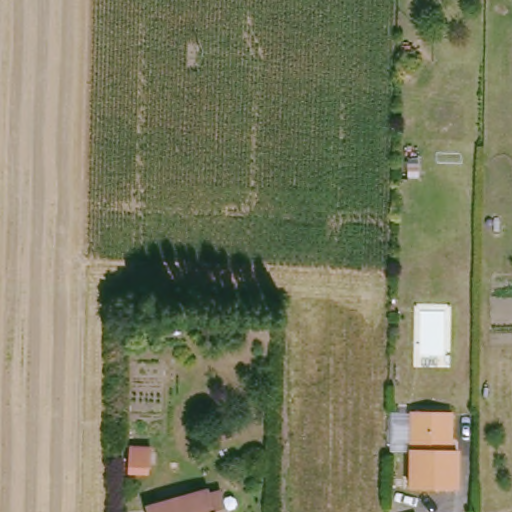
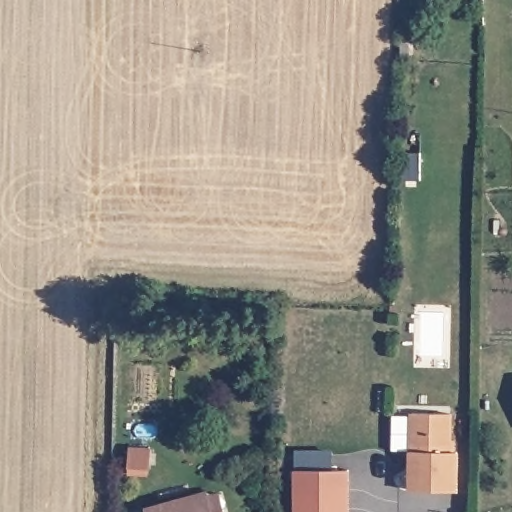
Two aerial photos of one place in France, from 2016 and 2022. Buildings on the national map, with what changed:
unchanged [(450,451),(457,451),(457,491),(410,490),(412,412),(450,413),(450,451)]
new [(351,469),(351,512),(295,512),(295,469),(351,469)]
unchanged [(220,492),(225,512),(148,512),(147,508),(207,491),(209,495),(220,492)]

